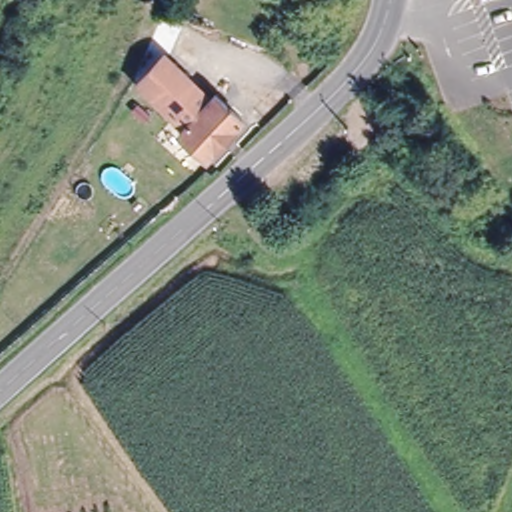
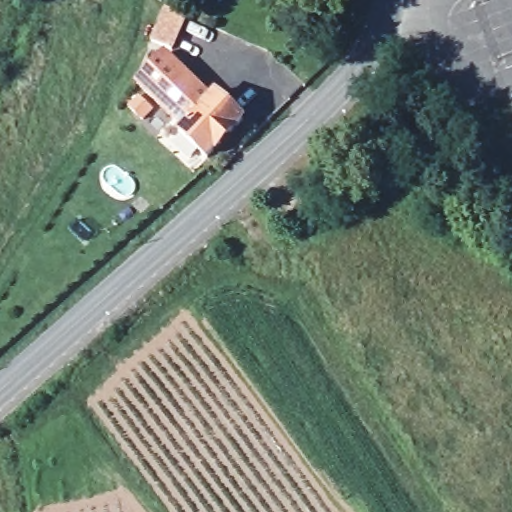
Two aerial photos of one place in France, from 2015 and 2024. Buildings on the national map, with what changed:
unchanged [(166,56),(212,101),(217,96),(243,121),(207,157),(189,138),(175,125),(157,109),(136,87),(151,71),(166,56)]

